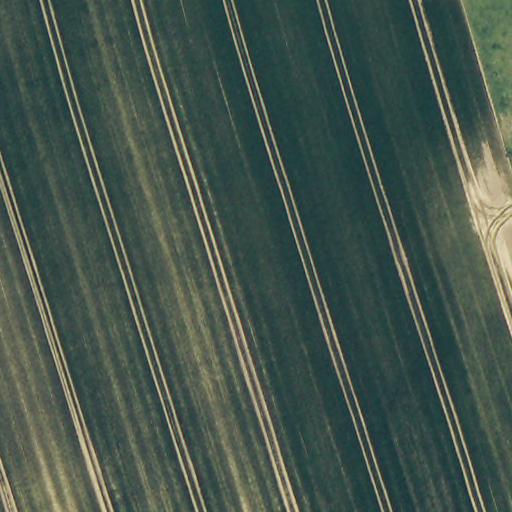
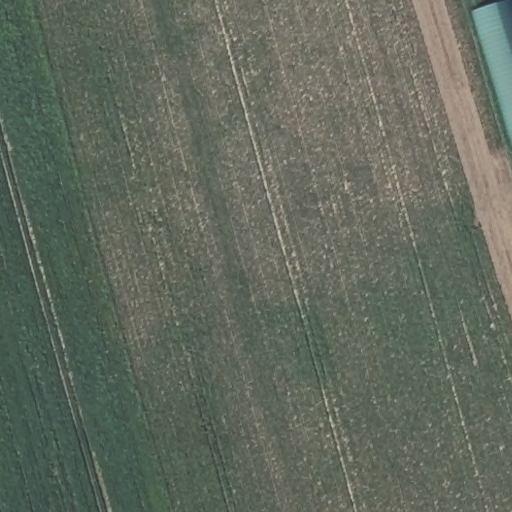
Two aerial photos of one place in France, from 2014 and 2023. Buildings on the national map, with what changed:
new [(471,12),(511,0),(512,0),(512,140),(471,12)]

